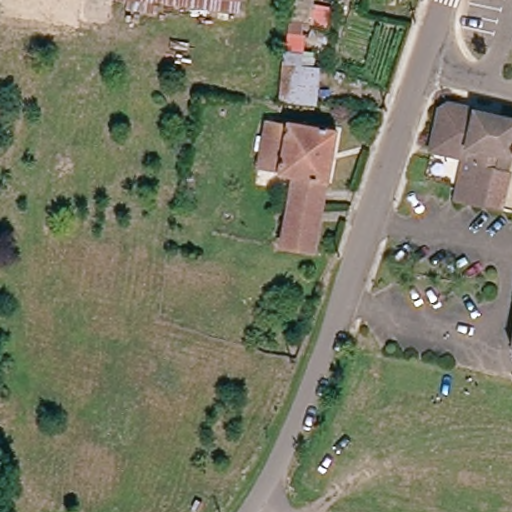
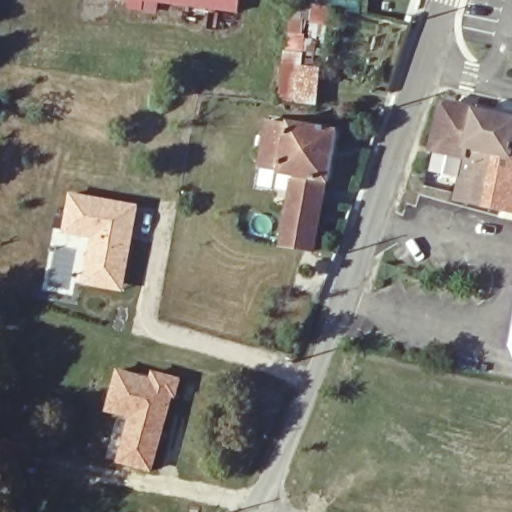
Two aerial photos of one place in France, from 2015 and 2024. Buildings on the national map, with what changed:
unchanged [(141,0),(238,0),(236,11),(141,0)]
unchanged [(318,66),(314,109),(275,106),(281,0),(312,0),(304,65),(318,66)]
unchanged [(451,103),(475,108),(465,157),(433,149),(442,109),(451,103)]
unchanged [(512,116),(512,158),(498,154),(495,169),(480,166),(473,201),(473,202),(457,198),(465,157),(475,108),(512,116)]
unchanged [(283,248),(295,180),(278,178),(278,174),(258,170),(267,126),(287,130),(288,125),(339,135),(329,188),(325,187),(313,254),(283,248)]
unchanged [(473,202),(473,201),(480,166),(495,169),(498,154),(512,158),(512,169),(502,208),(473,202)]
new [(68,190),(139,204),(123,293),(78,284),(88,241),(60,234),(68,190)]
unchanged [(512,325),(512,359),(508,347),(512,325)]
new [(116,368),(148,377),(151,369),(182,378),(151,473),(113,463),(125,419),(103,413),(116,368)]

